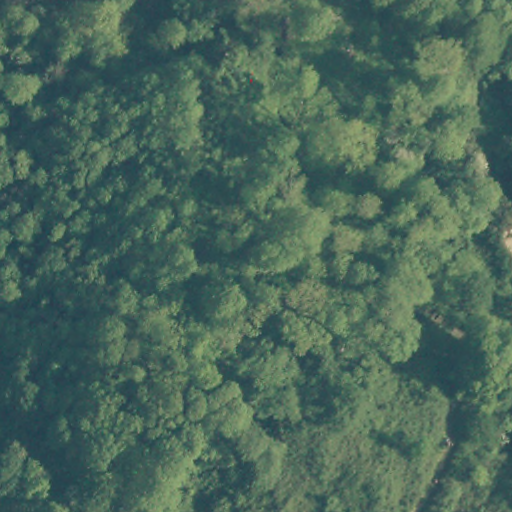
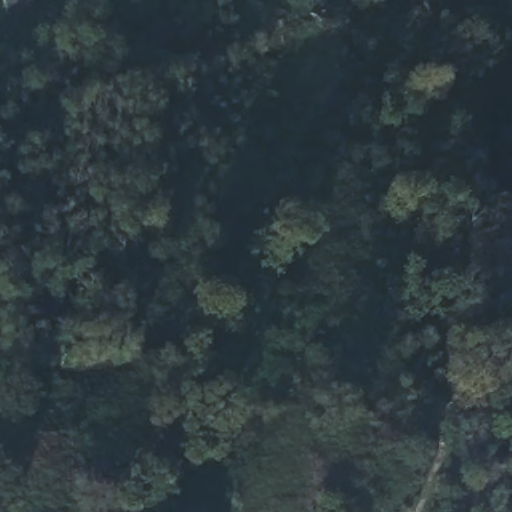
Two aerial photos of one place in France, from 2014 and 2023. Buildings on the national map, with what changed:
unchanged [(37,3),(11,12),(6,0),(36,0),(37,3)]

